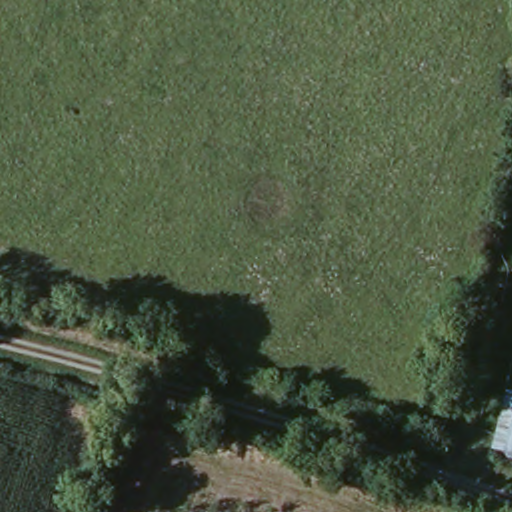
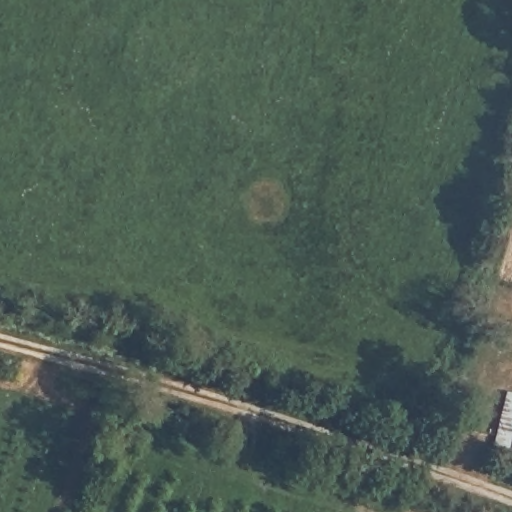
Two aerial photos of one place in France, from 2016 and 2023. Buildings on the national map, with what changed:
unchanged [(503,463),(491,457),(504,393),(512,394),(512,465),(503,463)]

